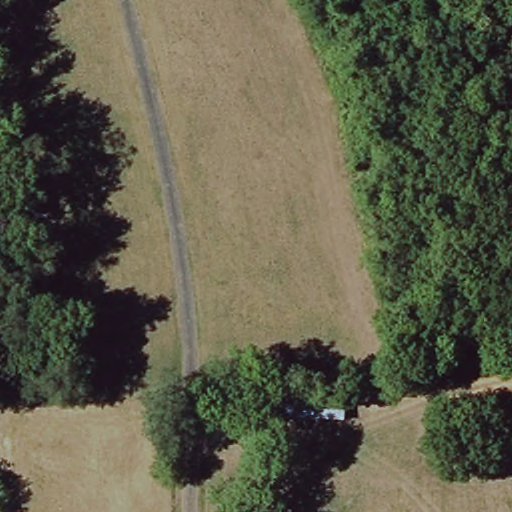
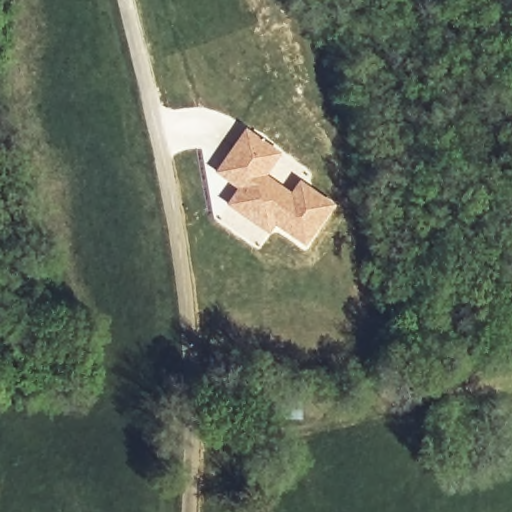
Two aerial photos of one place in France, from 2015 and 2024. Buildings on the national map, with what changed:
new [(282,154),(267,177),(290,193),(298,181),(335,206),(305,249),(275,229),(269,237),(225,207),(236,190),(213,175),(245,130),(282,154)]
unchanged [(275,422),(277,393),(343,395),(341,426),(275,422)]

